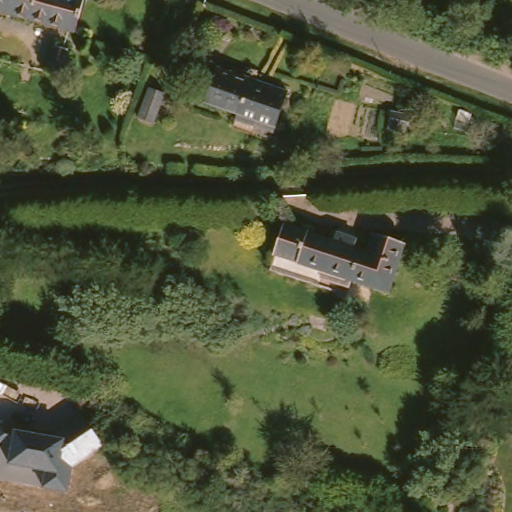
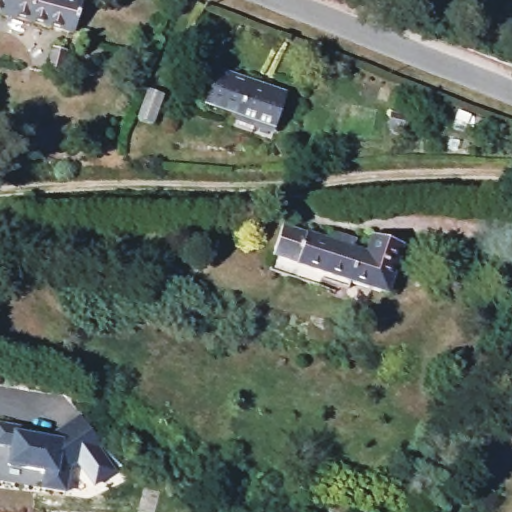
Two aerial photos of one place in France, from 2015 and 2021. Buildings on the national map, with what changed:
unchanged [(70,26),(0,7),(0,0),(78,0),(70,26)]
unchanged [(70,51),(61,79),(44,73),(54,45),(70,51)]
unchanged [(230,129),(235,117),(203,105),(215,70),(288,96),(275,131),(255,125),(251,137),(230,129)]
unchanged [(166,95),(155,125),(140,120),(149,90),(166,95)]
unchanged [(391,298),(265,255),(285,217),(366,243),(372,229),(406,245),(391,298)]
unchanged [(9,466),(11,448),(0,446),(0,421),(22,424),(20,431),(61,436),(85,420),(104,445),(71,470),(68,492),(41,490),(44,471),(9,466)]

